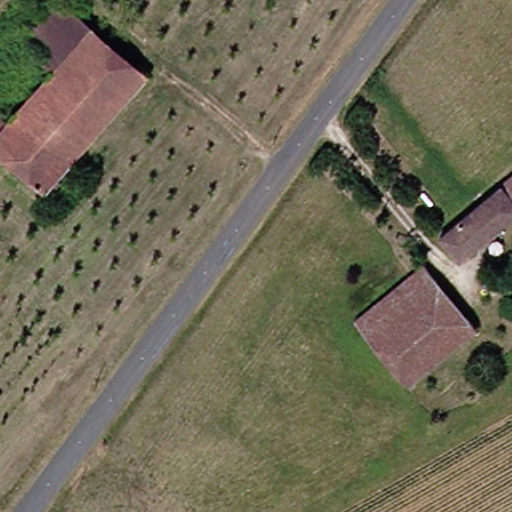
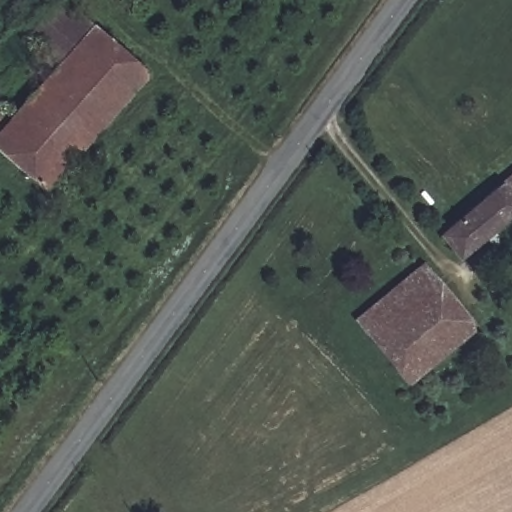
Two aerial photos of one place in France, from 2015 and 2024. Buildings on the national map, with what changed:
unchanged [(49,72),(37,62),(42,56),(25,40),(57,4),(144,80),(40,196),(0,161),(0,124),(2,126),(49,72)]
unchanged [(456,261),(437,237),(512,177),(512,216),(456,261)]
unchanged [(422,267),(471,333),(454,347),(404,280),(422,267)]
unchanged [(454,347),(407,385),(353,321),(404,280),(454,347)]

